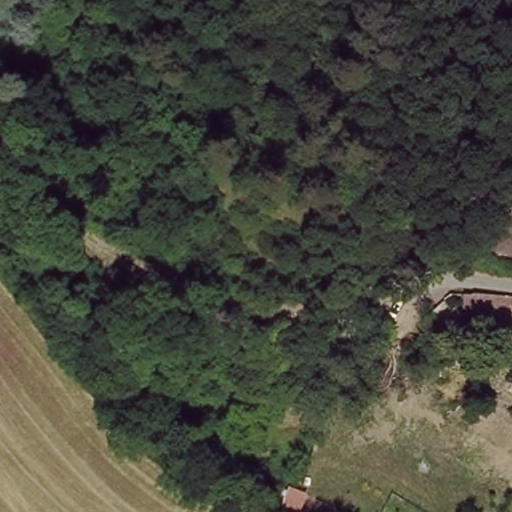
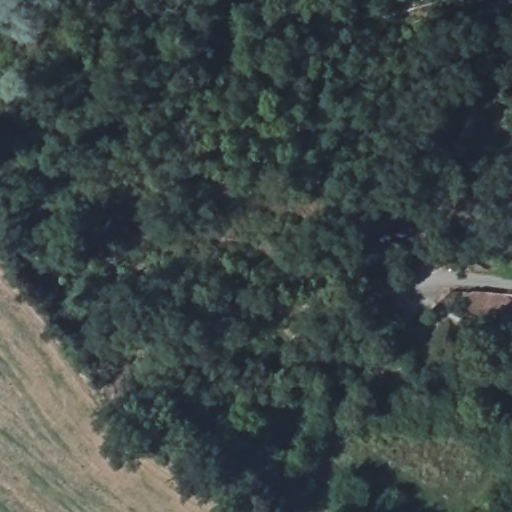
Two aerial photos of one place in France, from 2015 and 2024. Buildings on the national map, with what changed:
unchanged [(468,326),(471,292),(491,293),(512,295),(512,331),(468,326)]

